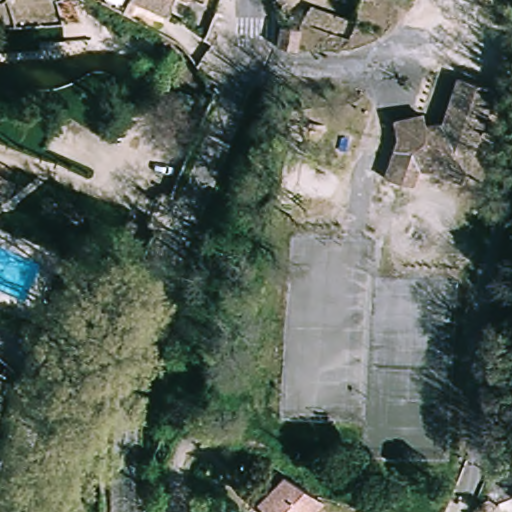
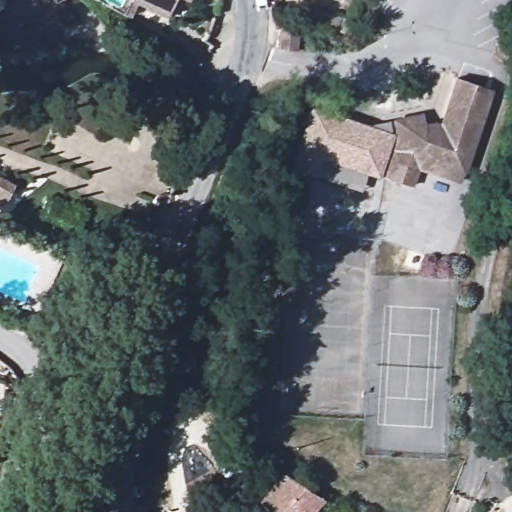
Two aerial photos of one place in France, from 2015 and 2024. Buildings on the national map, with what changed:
unchanged [(192,5),(183,1),(172,21),(139,3),(134,1),(134,0),(195,0),(192,5)]
unchanged [(418,170),(410,192),(380,180),(393,141),(390,121),(419,117),(420,129),(440,130),(455,82),(489,95),(460,185),(418,170)]
new [(393,141),(380,180),(366,174),(360,191),(315,175),(289,167),(310,107),(368,126),(390,121),(393,141)]
unchanged [(167,125),(189,134),(180,162),(157,152),(167,125)]
unchanged [(16,187),(8,205),(0,202),(0,181),(16,187)]
unchanged [(270,512),(256,497),(280,468),(324,497),(306,512),(270,512)]

